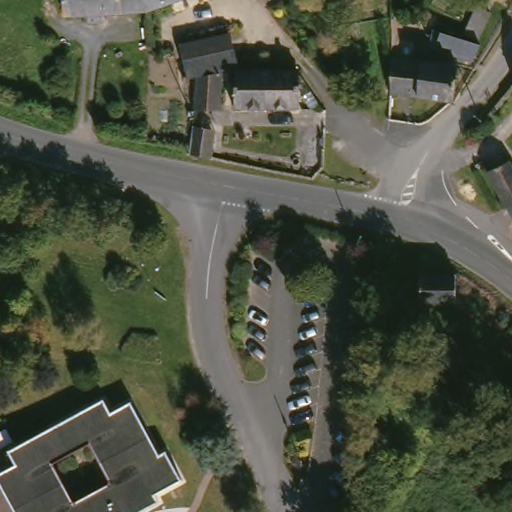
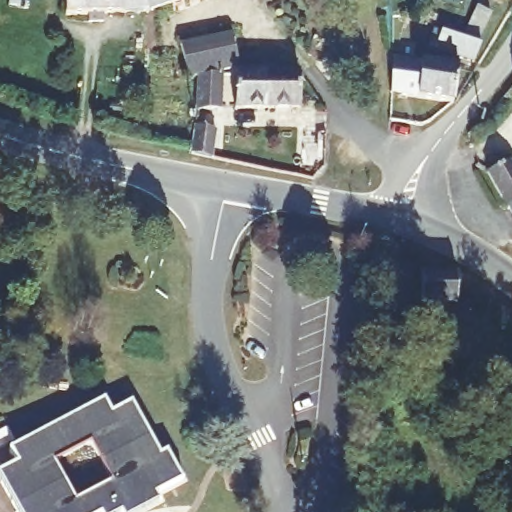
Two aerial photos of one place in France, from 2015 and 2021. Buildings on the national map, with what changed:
unchanged [(143,0),(145,11),(68,19),(67,0),(143,0)]
unchanged [(145,11),(143,0),(176,0),(146,10),(145,11)]
unchanged [(490,8),(484,38),(469,35),(474,5),(490,8)]
unchanged [(206,70),(189,74),(184,42),(239,29),(246,61),(230,65),(228,105),(202,106),(206,70)]
unchanged [(449,38),(489,46),(486,62),(446,54),(449,38)]
unchanged [(400,53),(459,61),(454,96),(394,88),(400,53)]
unchanged [(304,65),(304,105),(244,105),(244,66),(304,65)]
unchanged [(190,126),(208,130),(204,154),(188,150),(190,126)]
unchanged [(512,170),(512,206),(497,178),(512,170)]
unchanged [(461,275),(458,302),(423,297),(426,271),(461,275)]
unchanged [(13,443),(109,394),(116,407),(138,396),(163,452),(174,447),(188,476),(163,489),(165,496),(134,512),(126,512),(125,510),(120,512),(102,512),(101,510),(97,512),(23,512),(0,466),(0,464),(18,455),(13,443)]

